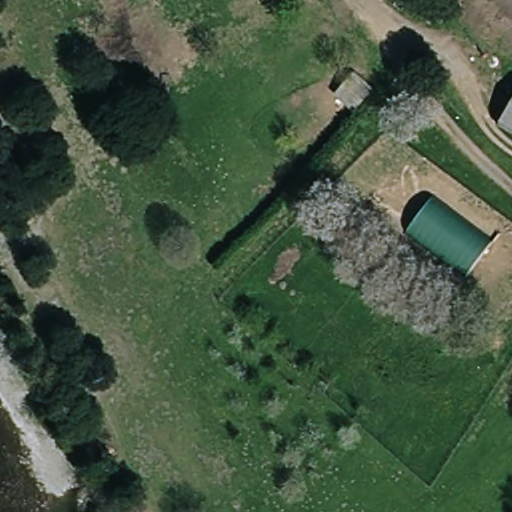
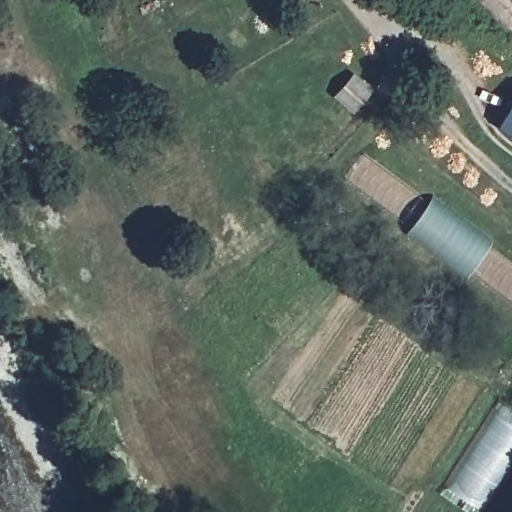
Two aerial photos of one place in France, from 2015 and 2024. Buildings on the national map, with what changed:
unchanged [(352,76),(372,90),(352,115),(332,96),(352,76)]
unchanged [(502,133),(512,112),(512,139),(502,133)]
unchanged [(467,275),(408,230),(432,202),(488,241),(467,275)]
new [(499,399),(512,408),(512,466),(483,510),(444,484),(499,399)]

